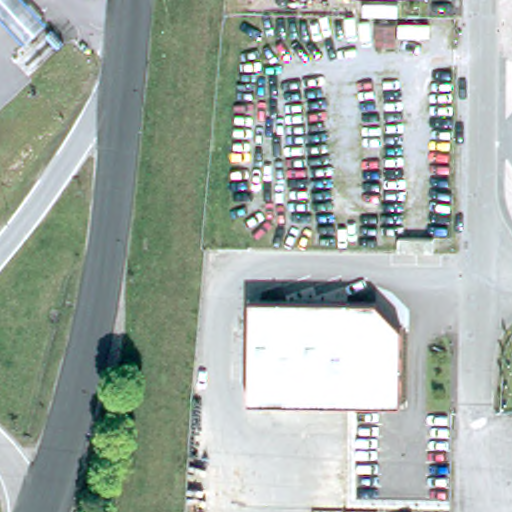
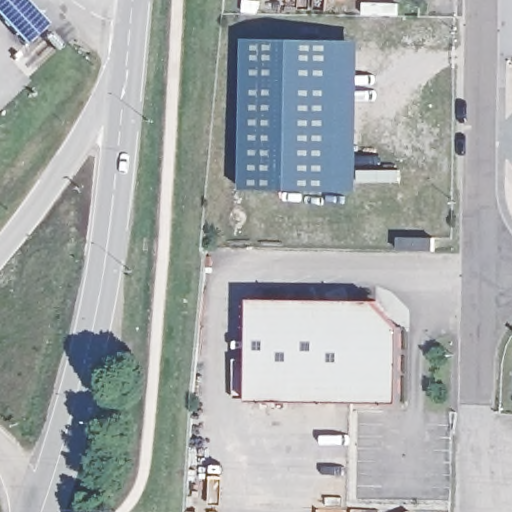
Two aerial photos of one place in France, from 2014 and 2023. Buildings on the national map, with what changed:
new [(27,41),(0,12),(0,0),(28,0),(48,21),(27,41)]
new [(246,40),(343,41),(341,192),(244,190),(246,40)]
new [(343,41),(364,42),(362,193),(341,192),(343,41)]
unchanged [(377,300),(401,325),(399,401),(249,399),(250,297),(377,300)]

